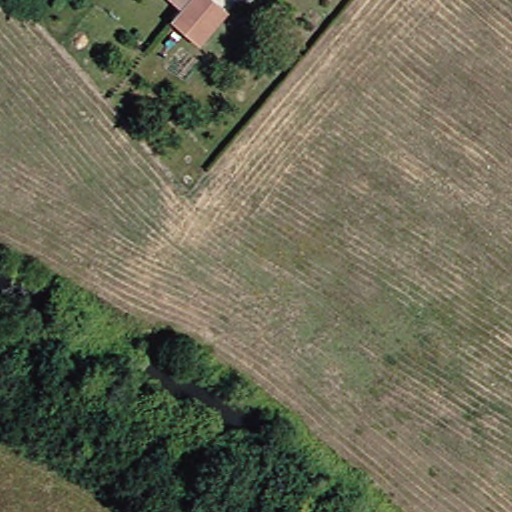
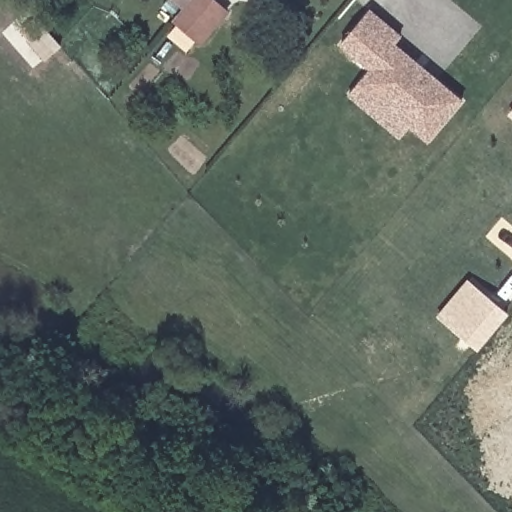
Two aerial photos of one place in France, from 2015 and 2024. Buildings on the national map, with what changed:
unchanged [(220,30),(210,41),(183,18),(199,0),(226,0),(236,10),(220,30)]
new [(408,126),(399,137),(366,110),(349,95),(358,85),(369,71),(339,45),(368,12),(398,37),(392,45),(459,101),(430,136),(425,142),(408,126)]
new [(512,111),(512,114),(510,113),(512,111)]
new [(477,352),(436,316),(467,279),(508,314),(477,352)]

